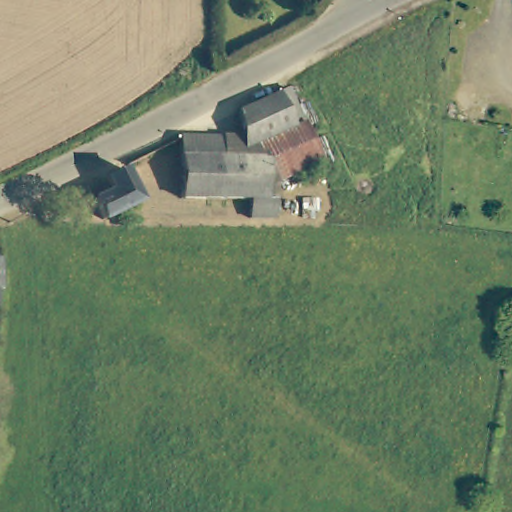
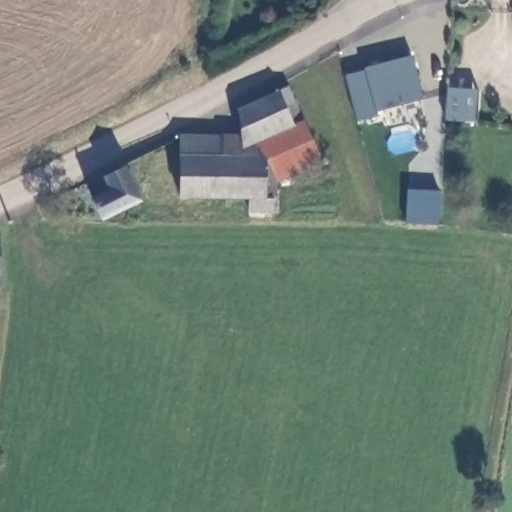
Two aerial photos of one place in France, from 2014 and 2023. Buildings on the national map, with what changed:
new [(422,99),(377,111),(379,115),(358,120),(347,75),(366,70),(365,67),(411,55),(422,99)]
unchanged [(275,195),(272,195),(272,214),(247,214),(247,195),(177,194),(181,135),(242,136),(240,106),(278,89),(286,105),(294,102),(322,160),(275,177),(275,195)]
new [(477,122),(445,120),(447,89),(477,90),(477,122)]
unchanged [(91,196),(109,186),(102,174),(122,165),(139,197),(102,215),(91,196)]
new [(438,224),(406,223),(407,190),(442,190),(438,224)]
unchanged [(0,290),(0,277),(1,290),(0,290)]

